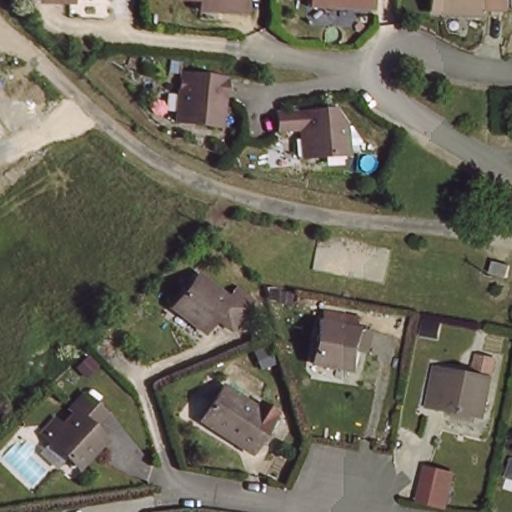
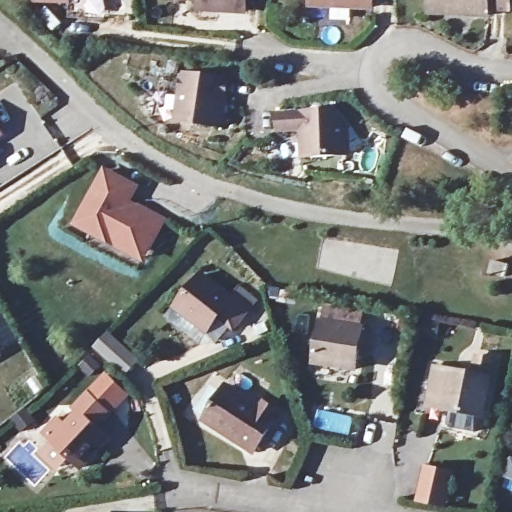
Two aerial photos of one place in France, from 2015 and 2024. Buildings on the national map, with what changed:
unchanged [(71,2),(47,0),(71,0),(71,2)]
unchanged [(196,0),(244,0),(243,13),(216,12),(196,11),(196,0)]
unchanged [(314,7),(314,0),(375,0),(374,8),(314,7)]
unchanged [(419,0),(478,0),(478,6),(419,3),(419,0)]
unchanged [(499,1),(478,0),(499,0),(499,1)]
unchanged [(230,76),(224,124),(178,118),(184,70),(230,76)]
unchanged [(346,118),(349,151),(305,152),(303,124),(279,126),(278,111),(334,106),(346,118)]
new [(102,168),(139,184),(132,202),(167,217),(143,262),(72,226),(102,168)]
unchanged [(507,271),(503,285),(485,281),(489,267),(507,271)]
unchanged [(226,293),(230,289),(247,303),(229,326),(213,314),(201,325),(171,299),(196,269),(226,293)]
unchanged [(352,354),(351,369),(311,364),(316,322),(321,323),(322,312),(357,319),(356,329),(366,331),(364,347),(362,355),(352,354)]
new [(0,354),(0,350),(2,353),(0,354)]
unchanged [(430,395),(436,367),(474,374),(477,359),(491,361),(479,417),(439,410),(428,408),(430,395)]
unchanged [(49,459),(57,451),(43,438),(71,409),(61,399),(74,383),(97,403),(85,418),(99,434),(89,445),(101,456),(83,474),(73,465),(69,462),(62,471),(49,459)]
unchanged [(256,410),(259,406),(275,417),(261,440),(253,452),(235,441),(203,420),(222,389),(256,410)]
unchanged [(424,475),(449,479),(443,511),(418,507),(424,475)]

